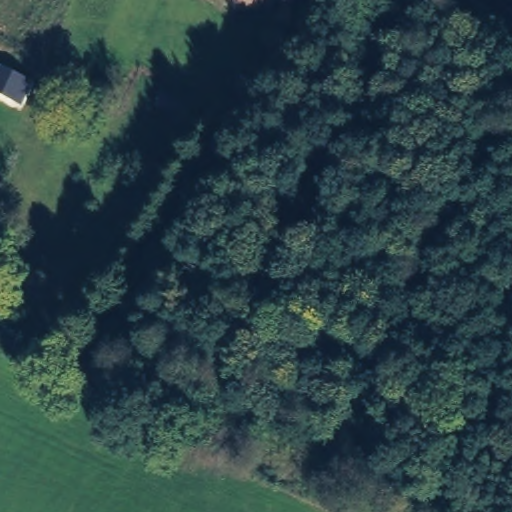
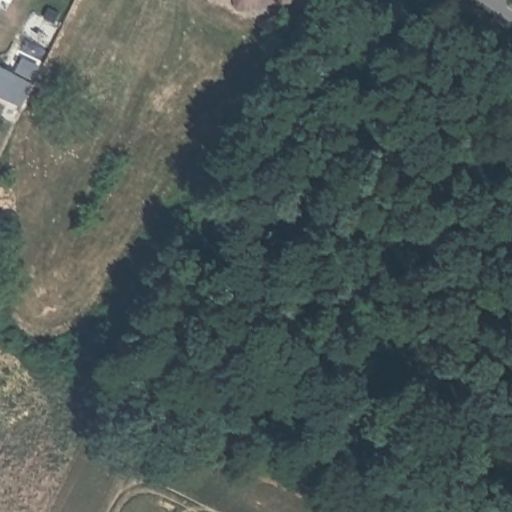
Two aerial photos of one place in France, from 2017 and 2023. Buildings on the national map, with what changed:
unchanged [(247,9),(246,0),(273,0),(273,6),(247,9)]
unchanged [(31,82),(21,107),(0,97),(0,66),(31,82)]

